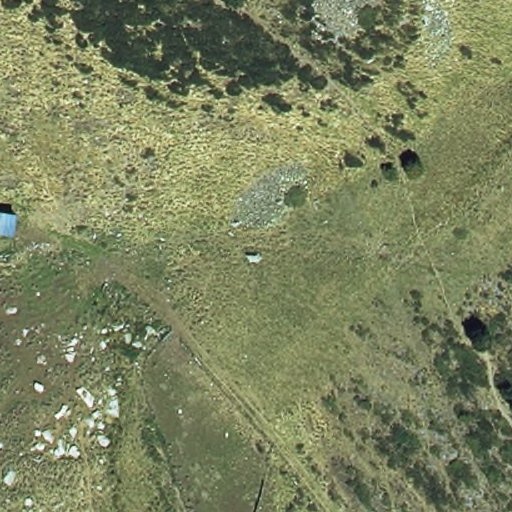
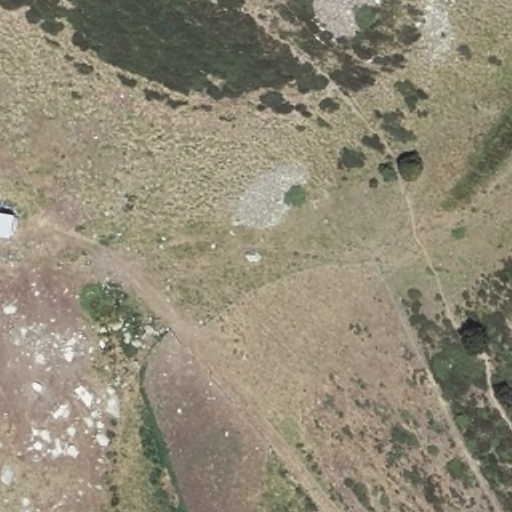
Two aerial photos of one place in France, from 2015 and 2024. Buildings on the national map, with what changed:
unchanged [(0,211),(16,214),(12,237),(0,235),(0,211)]

